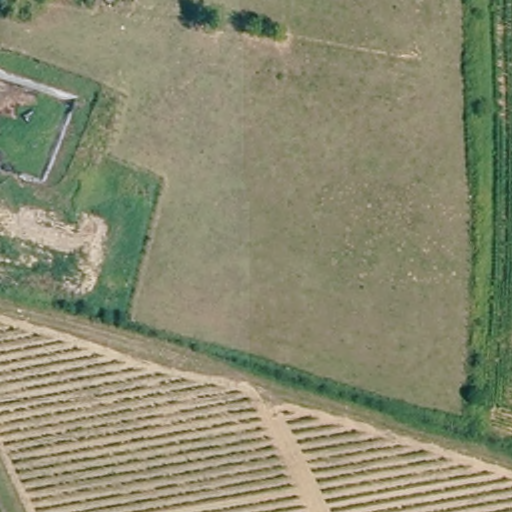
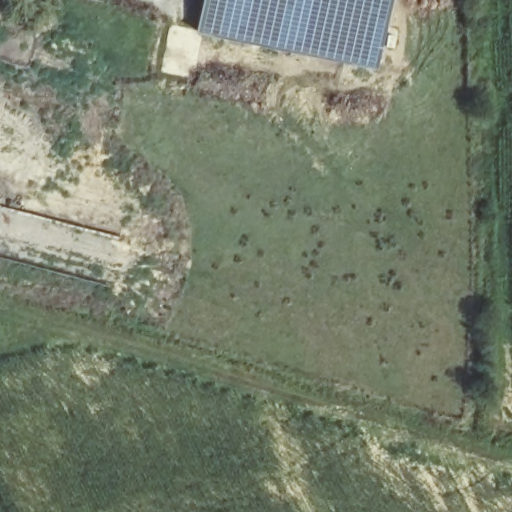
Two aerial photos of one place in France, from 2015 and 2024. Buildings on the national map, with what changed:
new [(204,0),(389,0),(376,68),(198,33),(204,0)]

